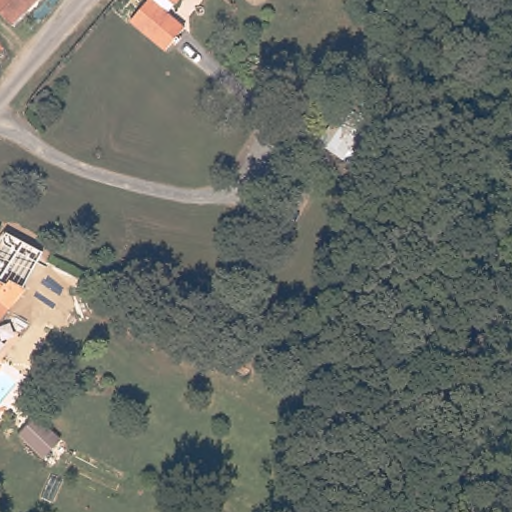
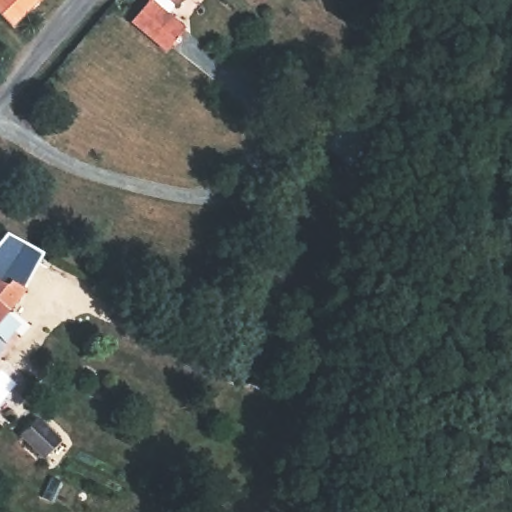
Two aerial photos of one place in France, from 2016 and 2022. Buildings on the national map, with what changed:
unchanged [(0,7),(0,0),(42,0),(17,24),(0,7)]
unchanged [(187,25),(169,47),(134,19),(149,0),(177,0),(169,10),(187,25)]
unchanged [(365,32),(350,60),(316,40),(331,14),(365,32)]
unchanged [(45,252),(26,287),(29,288),(10,308),(0,299),(0,241),(7,232),(45,252)]
unchanged [(0,320),(0,299),(10,308),(0,320)]
unchanged [(0,352),(0,339),(6,345),(0,352)]
unchanged [(38,413),(64,438),(44,460),(19,435),(38,413)]

